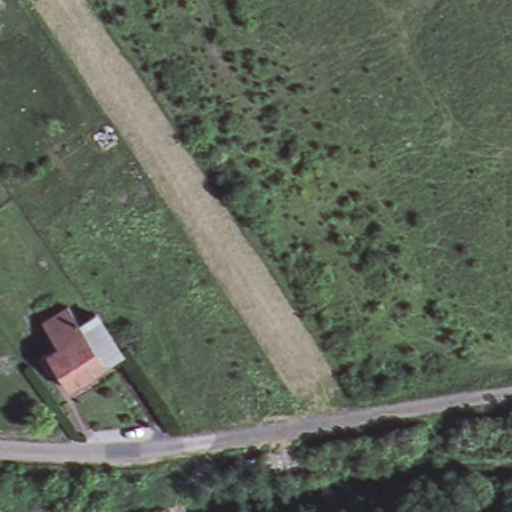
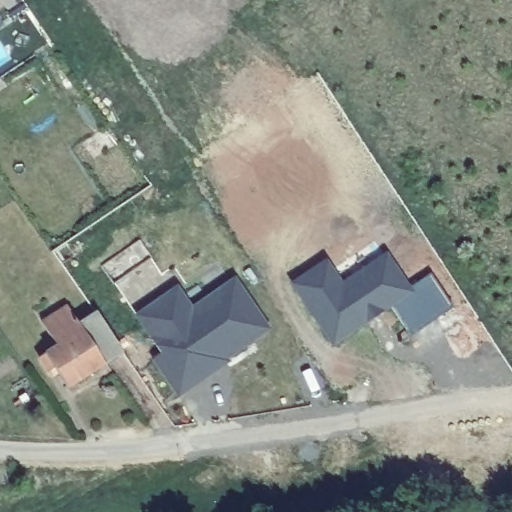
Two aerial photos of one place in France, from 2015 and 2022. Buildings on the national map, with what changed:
unchanged [(0,9),(0,2),(3,7),(0,9)]
new [(330,262),(343,286),(387,251),(413,291),(428,278),(448,308),(412,333),(394,303),(334,345),(295,284),(330,262)]
new [(205,376),(176,396),(152,361),(161,355),(135,317),(175,290),(190,310),(232,281),(266,330),(222,360),(224,363),(205,376)]
unchanged [(52,381),(40,362),(61,350),(47,327),(50,325),(38,305),(57,293),(70,312),(72,310),(84,328),(98,320),(125,356),(107,366),(69,390),(60,377),(52,381)]

